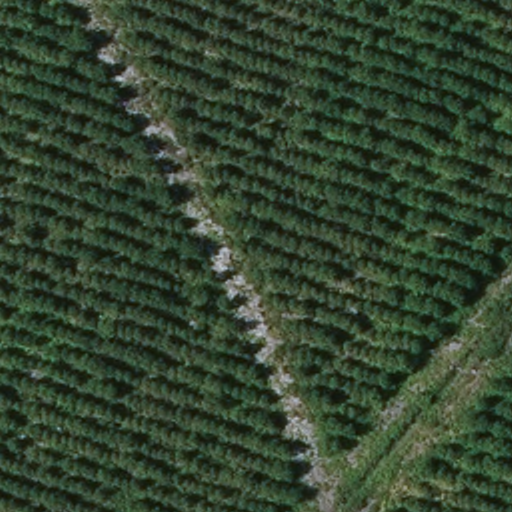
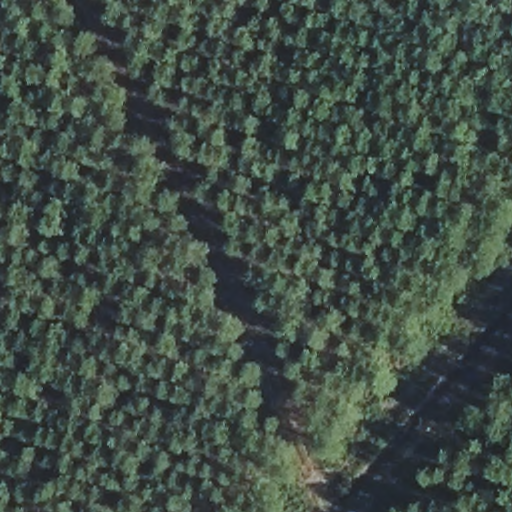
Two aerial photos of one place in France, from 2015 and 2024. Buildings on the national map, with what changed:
[]

